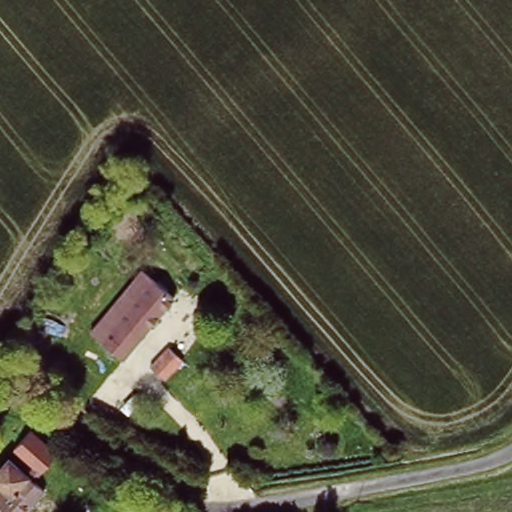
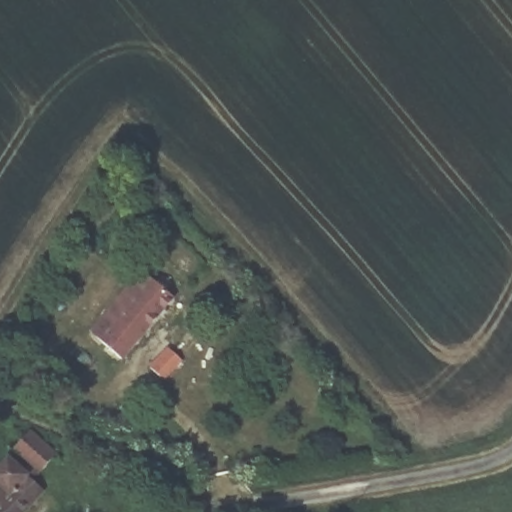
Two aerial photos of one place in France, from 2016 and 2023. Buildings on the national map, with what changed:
unchanged [(140,273),(172,290),(128,371),(97,354),(140,273)]
unchanged [(167,351),(181,360),(167,383),(152,374),(167,351)]
unchanged [(37,465),(10,450),(22,430),(53,448),(37,477),(48,483),(32,512),(0,512),(0,497),(4,490),(0,488),(0,470),(7,459),(32,474),(37,465)]

